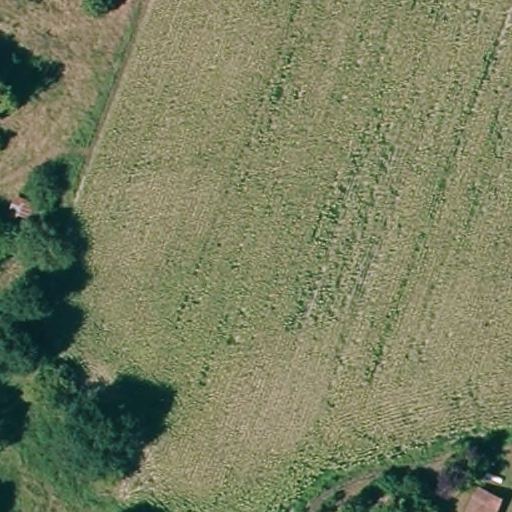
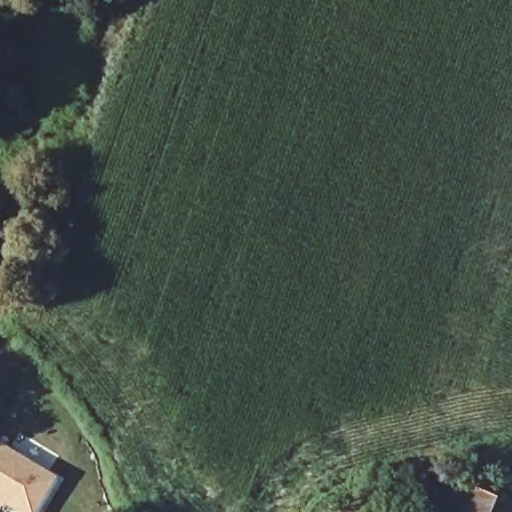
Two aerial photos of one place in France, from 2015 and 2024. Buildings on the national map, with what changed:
unchanged [(15,192),(51,210),(35,247),(4,231),(15,192)]
new [(40,512),(24,512),(0,497),(0,445),(59,481),(40,512)]
unchanged [(504,492),(495,512),(468,512),(482,484),(504,492)]

